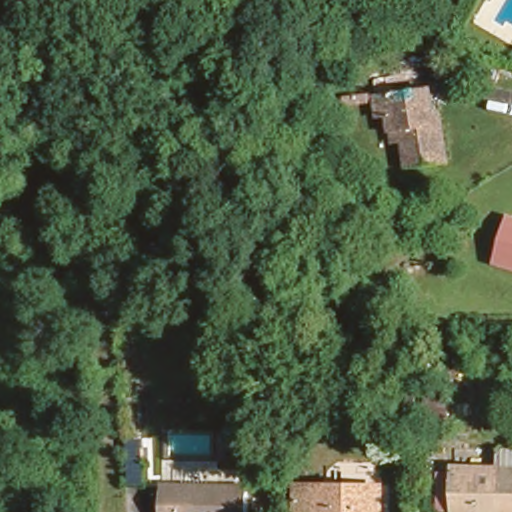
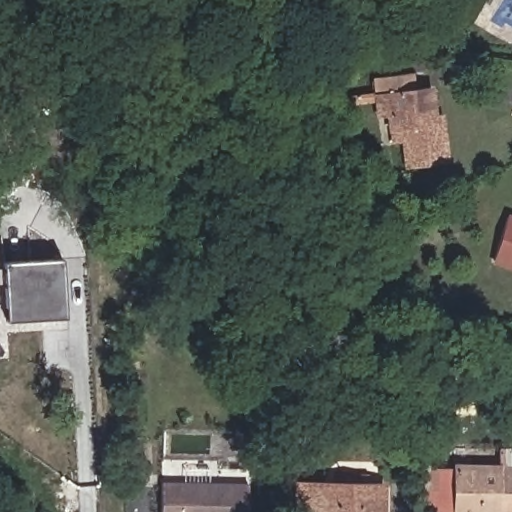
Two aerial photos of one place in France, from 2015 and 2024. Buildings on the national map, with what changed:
unchanged [(443,125),(448,163),(407,168),(403,139),(393,140),(392,133),(391,133),(388,114),(379,115),(374,78),(425,71),(427,90),(432,90),(435,118),(442,117),(443,125)]
unchanged [(507,217),(512,219),(512,266),(493,260),(507,217)]
new [(55,318),(10,320),(7,260),(67,257),(69,302),(70,317),(55,318)]
unchanged [(290,296),(278,280),(296,268),(307,284),(290,296)]
unchanged [(374,313),(334,312),(335,286),(375,286),(374,313)]
unchanged [(450,421),(426,421),(426,381),(450,381),(450,421)]
unchanged [(129,485),(127,453),(127,446),(141,445),(142,452),(144,484),(129,485)]
unchanged [(455,461),(512,463),(512,511),(455,510),(455,461)]
unchanged [(393,512),(313,512),(314,480),(394,481),(393,512)]
unchanged [(248,512),(161,512),(162,483),(248,485),(248,512)]

